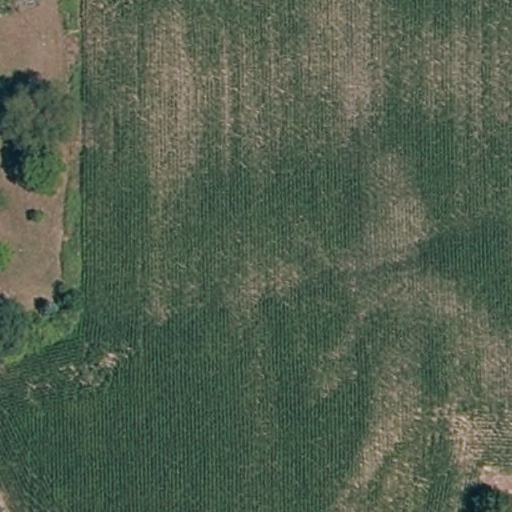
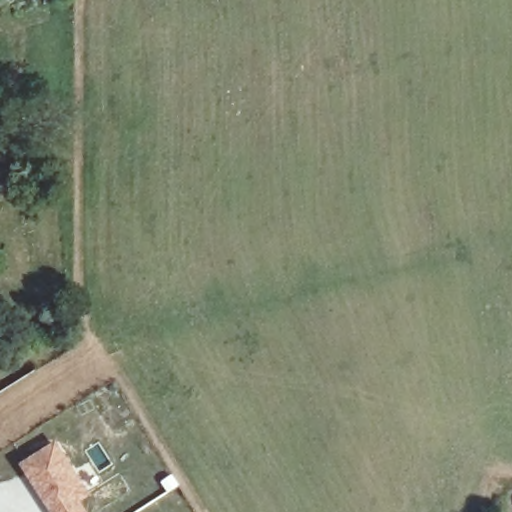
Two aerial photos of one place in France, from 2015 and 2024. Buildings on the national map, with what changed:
new [(58,440),(93,496),(83,503),(89,512),(52,512),(21,464),(58,440)]

